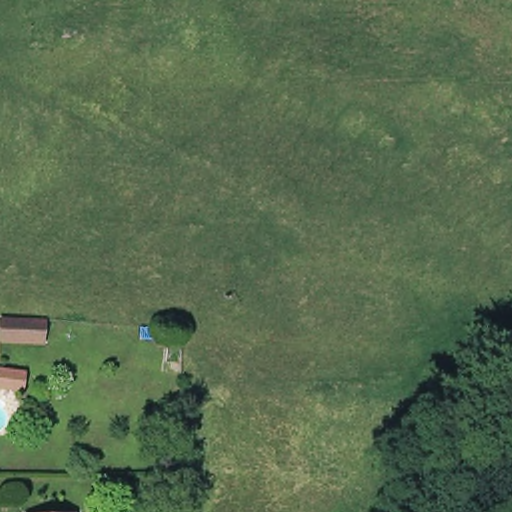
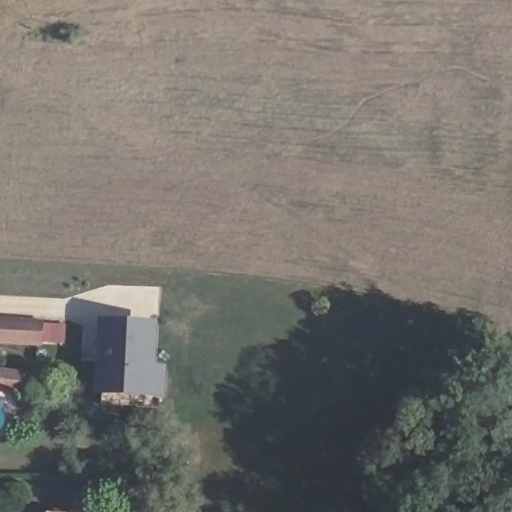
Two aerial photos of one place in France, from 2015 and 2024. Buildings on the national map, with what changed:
new [(80,361),(82,316),(97,317),(160,322),(157,363),(167,363),(165,399),(92,394),(94,362),(80,361)]
unchanged [(2,340),(3,320),(7,321),(32,322),(42,322),(42,342),(31,342),(2,340)]
new [(21,391),(0,389),(0,368),(22,370),(21,391)]

